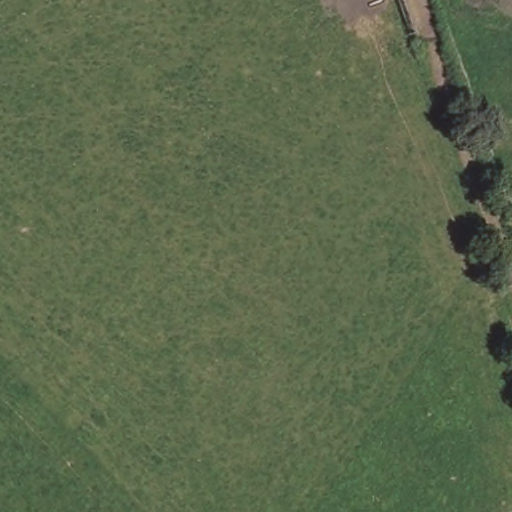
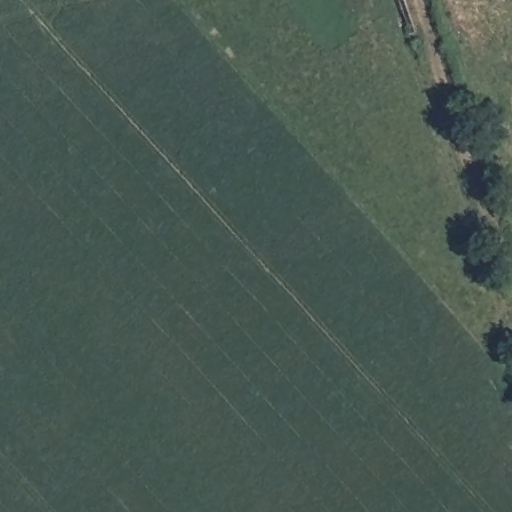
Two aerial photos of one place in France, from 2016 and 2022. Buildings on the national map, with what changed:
[]

